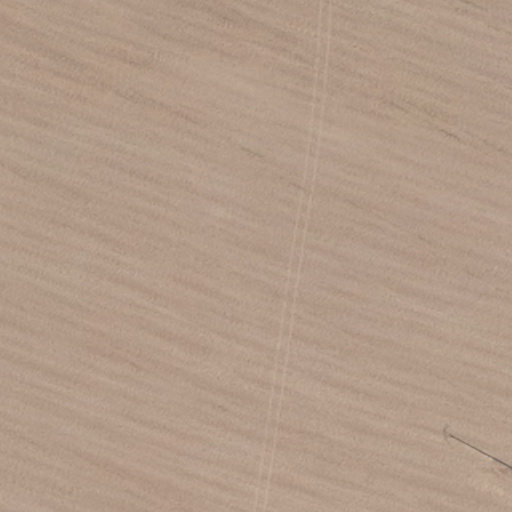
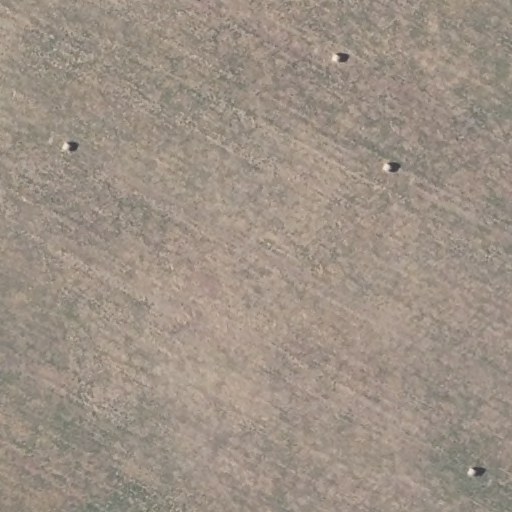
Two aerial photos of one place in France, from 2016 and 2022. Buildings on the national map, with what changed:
[]

